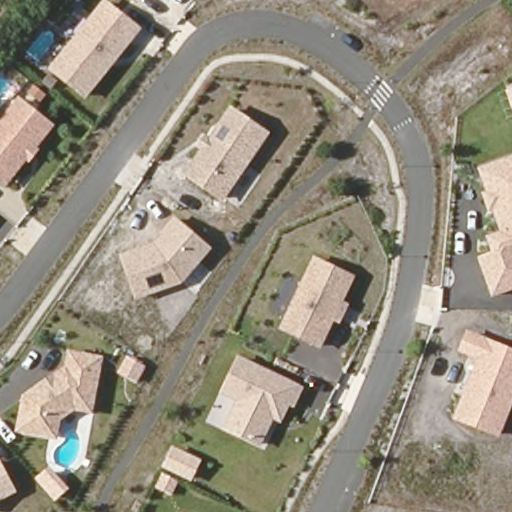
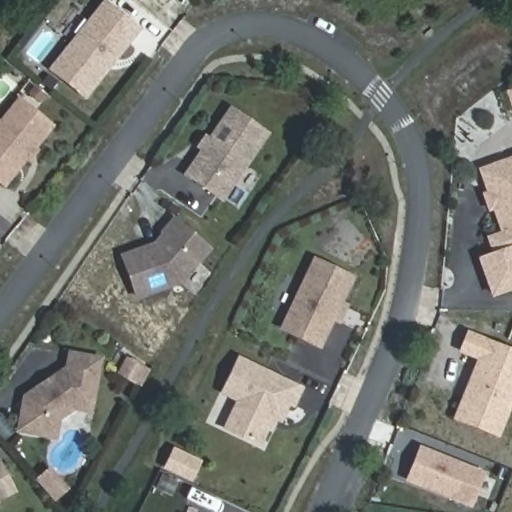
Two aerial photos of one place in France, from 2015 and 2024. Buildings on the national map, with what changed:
unchanged [(103,0),(105,0),(143,30),(86,100),(48,70),(103,0)]
unchanged [(0,177),(0,120),(6,124),(25,101),(56,126),(31,157),(10,185),(5,181),(0,177)]
unchanged [(267,133),(223,198),(188,174),(205,149),(200,146),(206,138),(211,140),(232,109),(267,133)]
unchanged [(512,158),(512,292),(492,299),(477,258),(492,252),(488,236),(501,232),(495,212),(488,213),(482,194),(488,192),(480,169),(512,158)]
unchanged [(156,242),(176,218),(215,248),(183,287),(137,302),(121,254),(156,242)]
unchanged [(346,301),(352,305),(342,326),(336,323),(323,349),(280,330),(314,256),(358,276),(346,301)]
unchanged [(512,349),(512,409),(500,438),(453,420),(477,360),(459,353),(468,331),(512,349)]
unchanged [(97,414),(75,412),(63,420),(59,440),(16,435),(21,397),(66,367),(68,351),(105,357),(97,414)]
unchanged [(137,386),(116,375),(127,355),(147,366),(137,386)]
unchanged [(296,409),(290,406),(282,425),(274,421),(262,449),(223,432),(237,401),(221,393),(239,355),(306,387),(296,409)]
new [(425,451),(486,475),(473,505),(413,481),(425,451)]
unchanged [(0,459),(19,494),(0,504),(0,459)]

